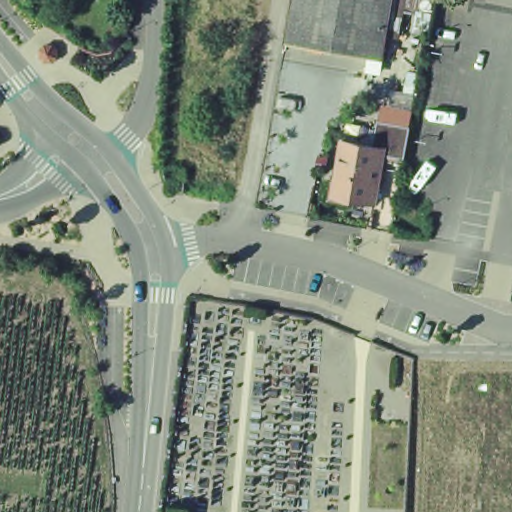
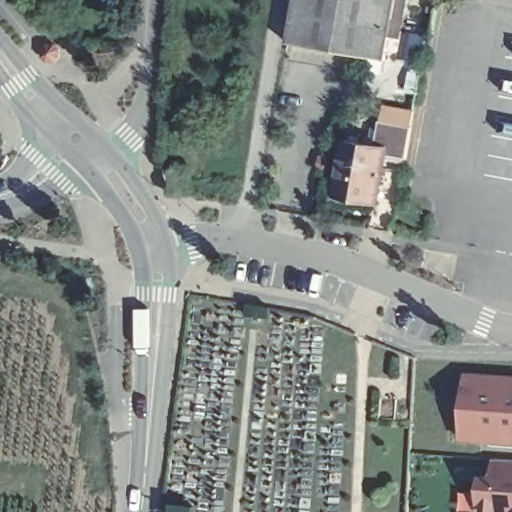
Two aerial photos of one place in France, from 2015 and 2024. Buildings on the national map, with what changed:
unchanged [(391,0),(380,60),(281,43),(289,0),(404,0),(403,2),(391,0)]
unchanged [(57,46),(58,55),(53,60),(45,60),(40,55),(40,48),(45,43),(52,43),(57,46)]
unchanged [(346,202),(345,206),(327,203),(331,184),(335,184),(342,143),(373,149),(377,124),(409,129),(408,130),(403,161),(382,158),(372,208),(346,202)]
unchanged [(171,164),(188,165),(187,190),(170,190),(171,164)]
new [(512,439),(461,437),(463,374),(512,374),(512,439)]
new [(491,476),(492,458),(512,459),(512,512),(477,509),(480,476),(491,476)]
unchanged [(169,497),(195,498),(193,512),(169,512),(169,497)]

